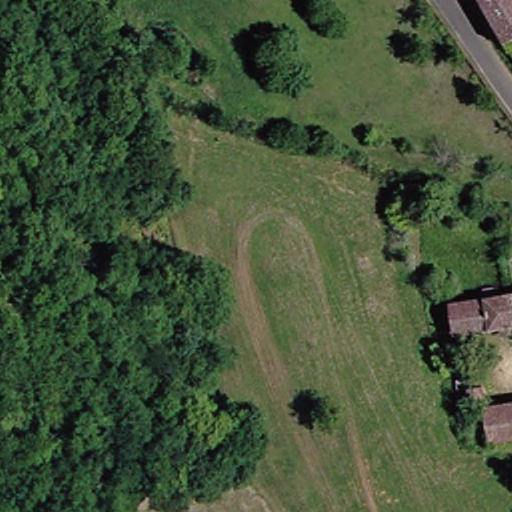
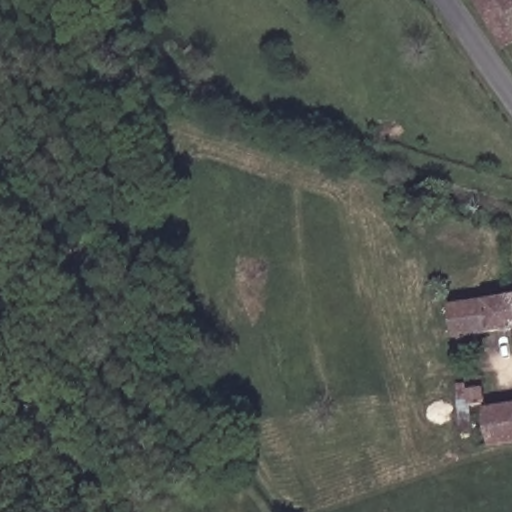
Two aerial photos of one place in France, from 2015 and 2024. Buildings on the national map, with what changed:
unchanged [(512,36),(497,46),(467,0),(502,0),(506,6),(512,17),(512,36)]
unchanged [(467,334),(470,347),(448,351),(442,306),(473,303),(471,295),(488,294),(488,299),(499,297),(504,328),(467,334)]
unchanged [(499,297),(512,295),(512,327),(504,328),(499,297)]
unchanged [(472,412),(457,413),(455,399),(453,384),(467,382),(472,412)]
unchanged [(512,406),(512,415),(510,407),(512,406)]
unchanged [(474,415),(510,407),(512,415),(512,446),(482,453),(474,415)]

